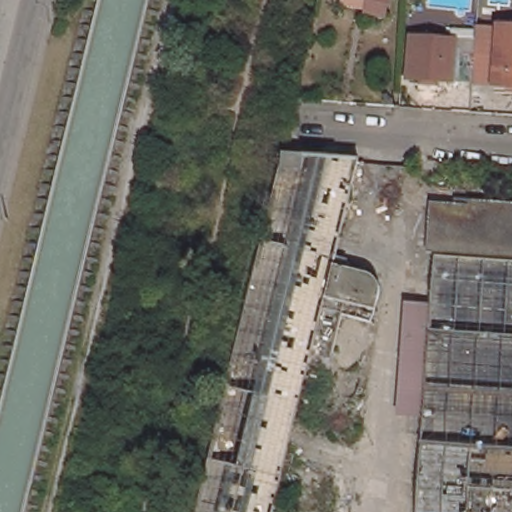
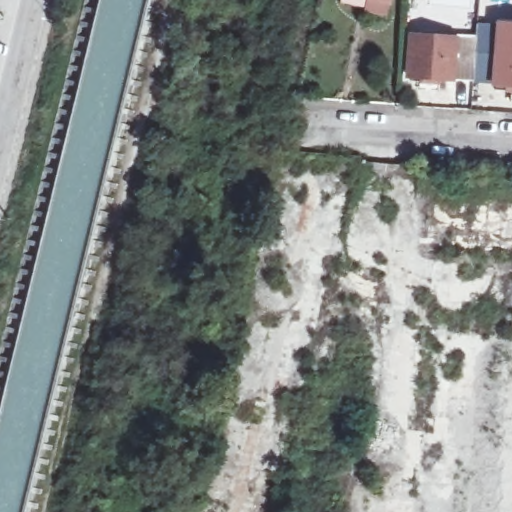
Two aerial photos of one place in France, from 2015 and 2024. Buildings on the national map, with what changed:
unchanged [(385,0),(390,0),(390,1),(385,0)]
unchanged [(495,86),(497,51),(499,24),(512,25),(512,87),(495,86)]
unchanged [(474,82),(409,77),(412,38),(457,42),(456,56),(476,57),(474,82)]
demolished [(281,154),(331,158),(355,160),(330,263),(357,269),(370,281),(374,299),(360,362),(329,356),(326,368),(306,364),(283,456),(278,478),(270,512),(194,512),(281,154)]
demolished [(427,253),(429,205),(466,207),(467,201),(512,204),(512,258),(427,253)]
demolished [(425,421),(432,308),(435,257),(512,263),(512,512),(418,512),(425,421)]

